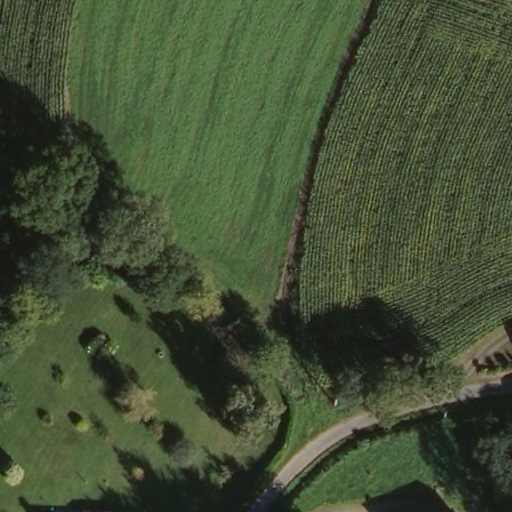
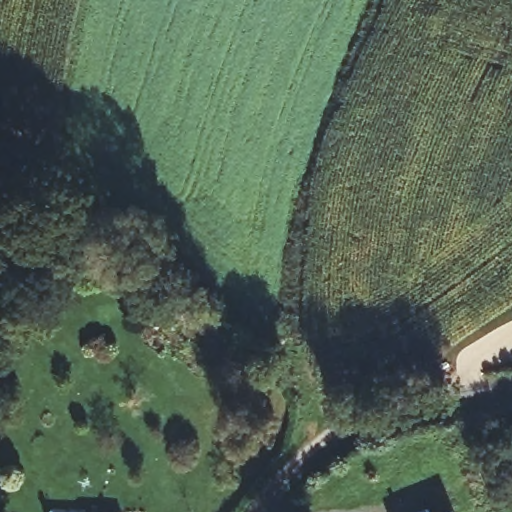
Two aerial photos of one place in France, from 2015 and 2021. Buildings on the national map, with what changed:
unchanged [(434,512),(412,512),(431,504),(434,512)]
unchanged [(127,506),(126,512),(89,512),(89,506),(127,506)]
unchanged [(459,512),(442,512),(457,506),(459,512)]

